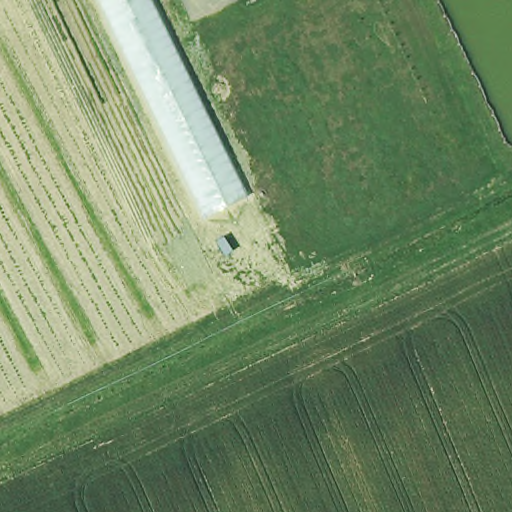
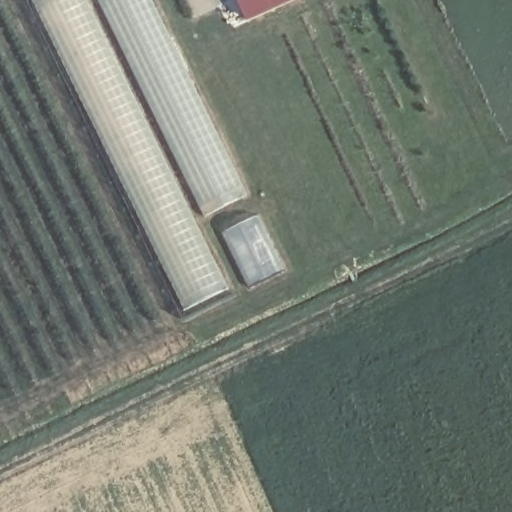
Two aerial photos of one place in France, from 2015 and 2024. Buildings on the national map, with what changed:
new [(221,286),(185,304),(38,5),(48,0),(78,0),(221,286)]
unchanged [(247,197),(205,217),(98,0),(151,0),(247,197)]
new [(248,22),(239,0),(297,0),(248,22)]
new [(247,288),(222,232),(259,216),(285,272),(247,288)]

